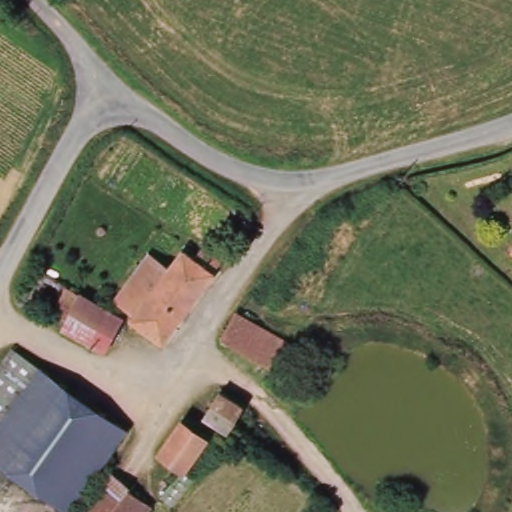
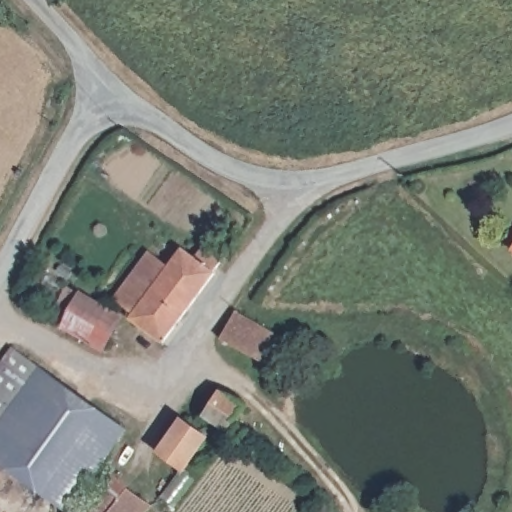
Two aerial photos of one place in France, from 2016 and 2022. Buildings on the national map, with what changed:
unchanged [(192,250),(200,240),(210,248),(220,257),(214,267),(218,270),(188,311),(167,338),(136,314),(140,307),(120,293),(136,271),(151,250),(167,262),(183,242),(192,250)]
unchanged [(63,320),(76,296),(115,320),(128,329),(109,356),(72,335),(76,328),(63,320)]
unchanged [(282,367),(270,364),(256,356),(220,336),(229,320),(234,319),(267,336),(291,348),(282,367)]
unchanged [(39,366),(0,423),(0,360),(10,345),(39,366)]
unchanged [(39,366),(94,405),(67,445),(44,428),(13,471),(0,461),(0,423),(39,366)]
unchanged [(200,423),(225,390),(247,404),(245,408),(257,418),(248,433),(241,440),(229,430),(226,434),(217,428),(189,467),(184,465),(164,450),(189,416),(200,423)]
unchanged [(44,428),(67,445),(94,405),(125,428),(69,511),(13,471),(44,428)]
unchanged [(110,480),(125,492),(108,512),(82,512),(110,480)]
unchanged [(133,482),(155,498),(144,512),(108,512),(125,492),(133,482)]

